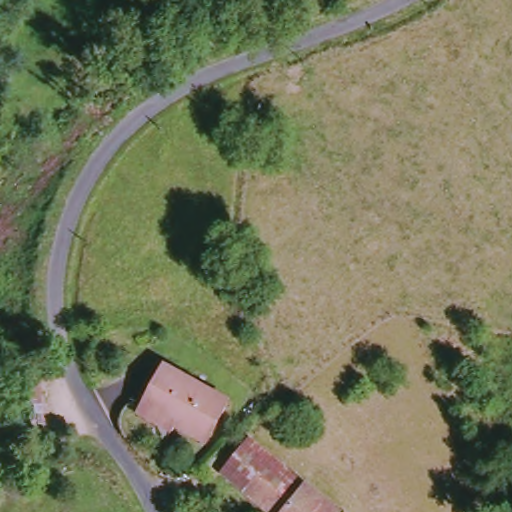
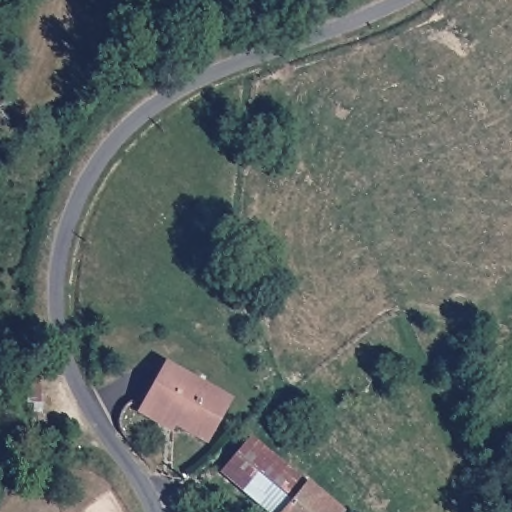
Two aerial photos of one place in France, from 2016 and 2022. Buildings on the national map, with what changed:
unchanged [(144,407),(151,397),(163,379),(173,365),(183,372),(234,405),(205,446),(176,425),(172,430),(144,407)]
unchanged [(256,444),(336,512),(269,512),(226,475),(256,444)]

